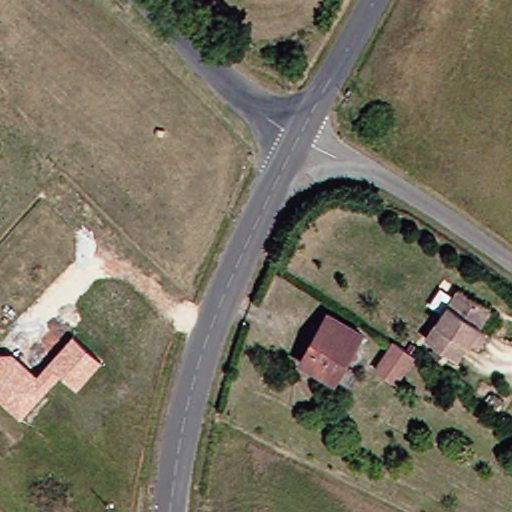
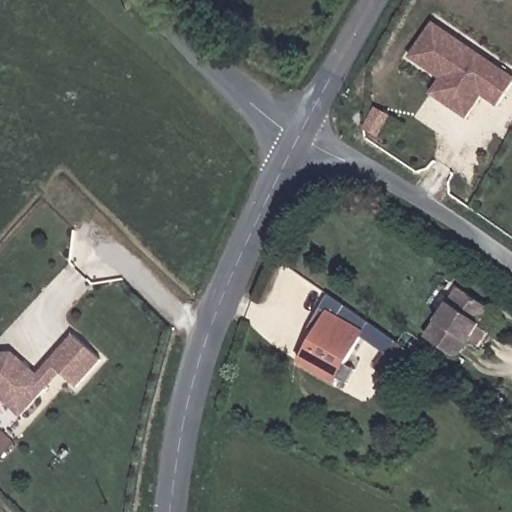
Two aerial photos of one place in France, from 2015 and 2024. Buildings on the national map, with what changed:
new [(512,76),(512,86),(498,109),(484,99),(468,120),(429,95),(439,80),(408,59),(433,20),(512,76)]
unchanged [(381,124),(374,140),(372,144),(359,137),(368,117),(371,117),(381,124)]
unchanged [(489,351),(476,344),(465,360),(433,338),(466,288),(499,310),(488,326),(499,333),(489,351)]
unchanged [(329,320),(361,340),(349,361),(358,367),(349,380),(339,375),(336,377),(306,357),(329,320)]
unchanged [(13,350),(38,373),(73,334),(103,360),(78,390),(60,376),(19,417),(0,399),(0,351),(13,350)]
unchanged [(399,337),(416,349),(398,376),(381,366),(399,337)]

